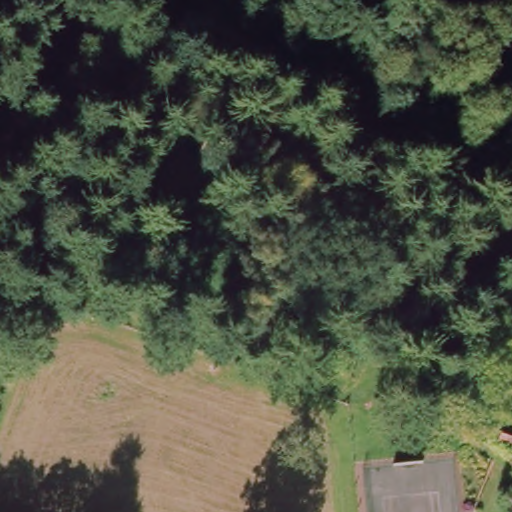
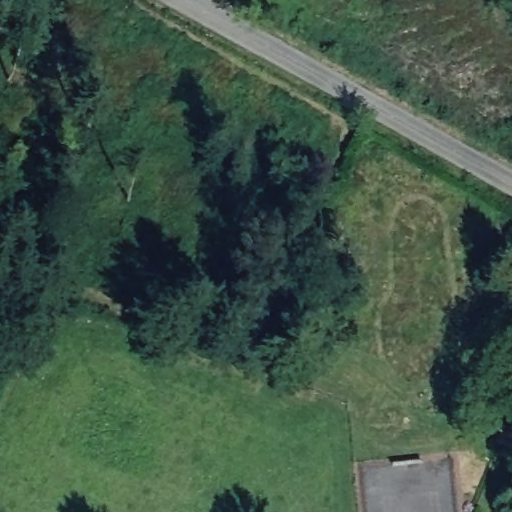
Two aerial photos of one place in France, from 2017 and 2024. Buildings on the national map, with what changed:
unchanged [(493,451),(502,434),(512,439),(512,448),(507,458),(493,451)]

